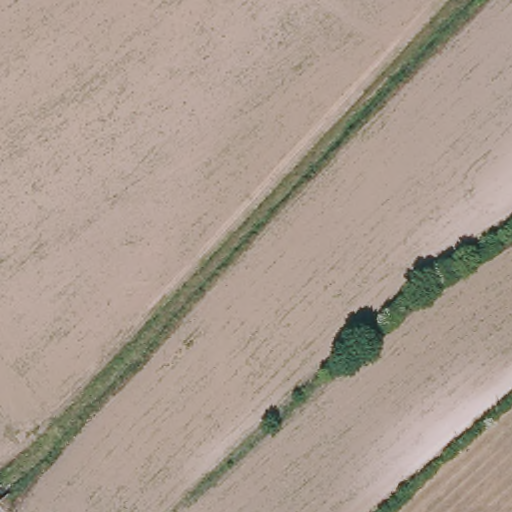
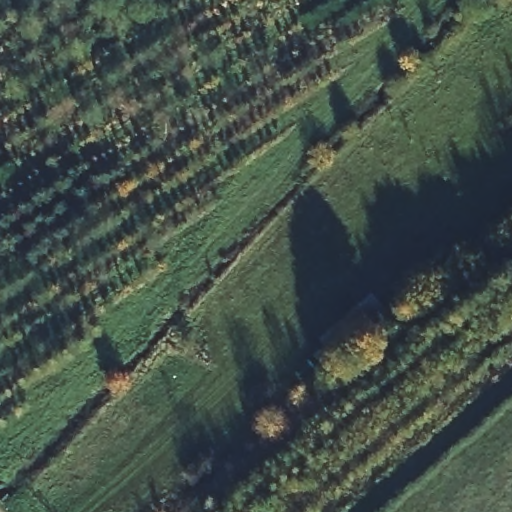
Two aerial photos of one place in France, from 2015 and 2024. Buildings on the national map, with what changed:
[]

